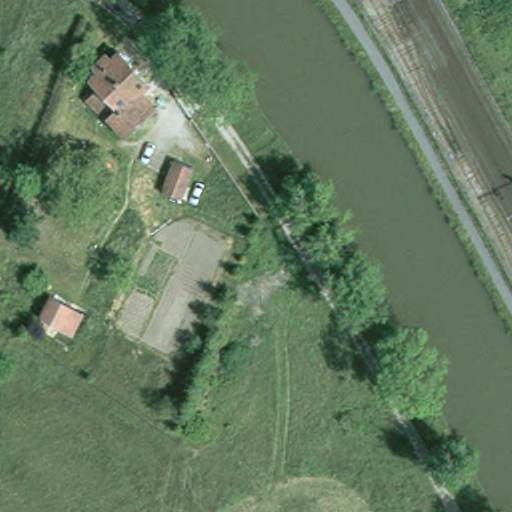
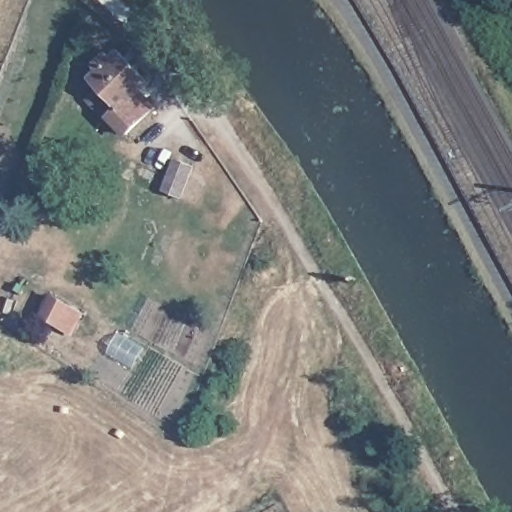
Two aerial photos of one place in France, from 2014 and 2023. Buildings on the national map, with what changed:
unchanged [(99,67),(105,62),(113,54),(118,59),(126,52),(156,82),(143,95),(149,102),(143,107),(151,118),(132,135),(116,117),(112,121),(93,98),(104,87),(97,80),(105,74),(101,70),(99,67)]
unchanged [(181,199),(164,192),(176,160),(193,167),(181,199)]
unchanged [(63,301),(81,312),(71,332),(55,321),(63,301)]

